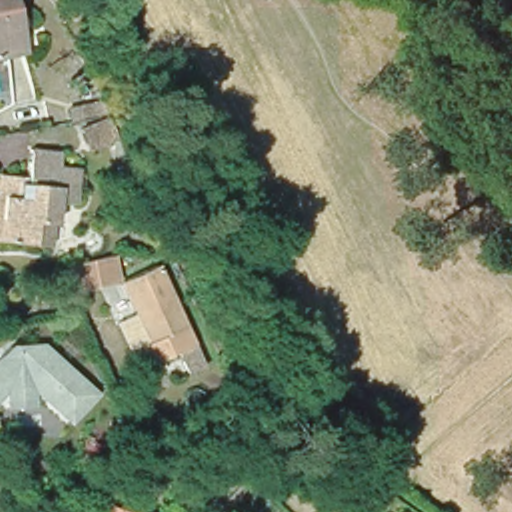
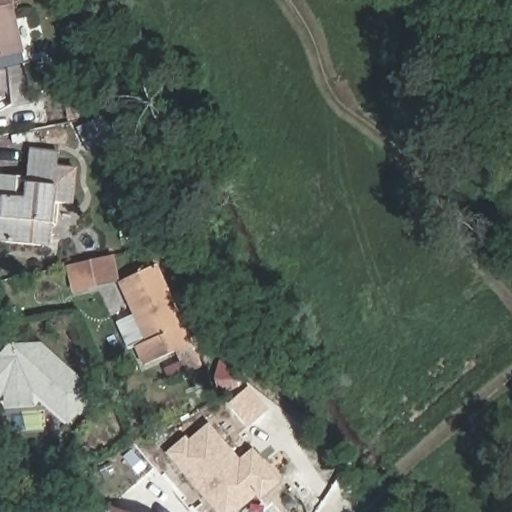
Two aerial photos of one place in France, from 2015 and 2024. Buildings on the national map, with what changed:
unchanged [(25,52),(0,58),(0,0),(13,0),(25,52)]
unchanged [(76,129),(103,117),(113,140),(86,152),(76,129)]
unchanged [(2,246),(0,246),(0,179),(15,180),(30,182),(34,153),(64,156),(62,170),(84,173),(78,208),(59,206),(56,229),(54,252),(45,251),(2,246)]
new [(112,260),(116,282),(115,284),(79,293),(75,291),(70,269),(112,260)]
unchanged [(183,327),(192,346),(144,368),(135,349),(147,344),(131,311),(119,282),(134,275),(154,266),(183,327)]
unchanged [(6,386),(4,386),(0,389),(0,354),(10,343),(41,341),(85,380),(89,393),(76,408),(61,408),(34,384),(31,384),(32,399),(7,401),(6,386)]
new [(219,396),(214,379),(219,359),(244,362),(241,381),(244,391),(249,387),(269,410),(248,428),(229,405),(219,396)]
new [(189,440),(209,423),(239,459),(253,449),(281,482),(260,501),(257,496),(238,512),(216,512),(165,454),(185,436),(189,440)]

